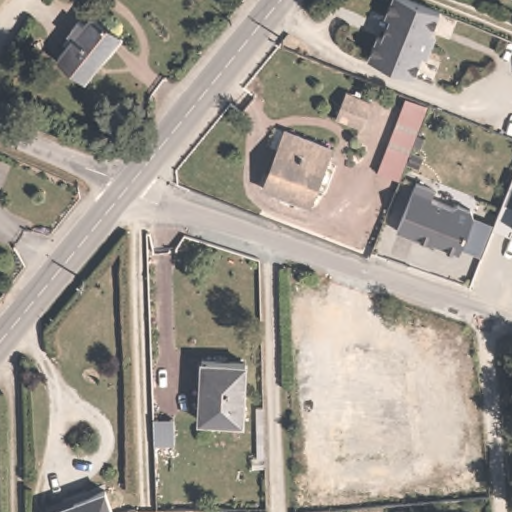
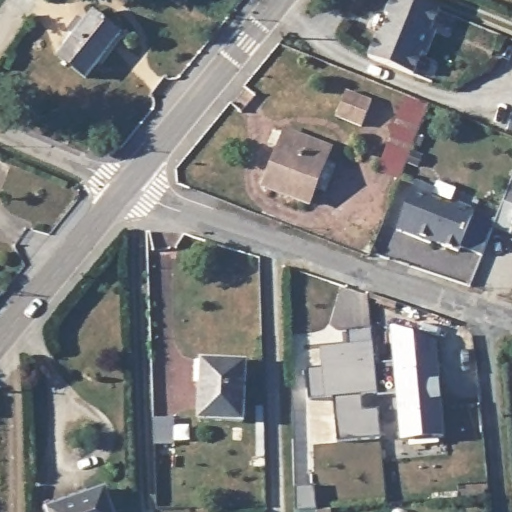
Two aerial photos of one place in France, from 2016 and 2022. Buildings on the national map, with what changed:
unchanged [(432,35),(436,37),(430,56),(424,55),(414,77),(368,58),(378,36),(382,38),(392,19),(385,16),(392,0),(411,0),(441,12),(432,35)]
unchanged [(122,36),(87,79),(57,56),(92,13),(122,36)]
unchanged [(375,96),(365,122),(342,113),(352,86),(375,96)]
unchanged [(379,169),(404,100),(427,106),(401,177),(379,169)]
unchanged [(333,144),(310,203),(264,186),(290,127),(333,144)]
unchanged [(512,176),(512,225),(507,235),(490,229),(480,255),(460,246),(472,214),(494,221),(512,176)]
unchanged [(451,206),(457,203),(470,208),(472,214),(458,251),(431,241),(430,243),(396,230),(415,181),(433,188),(430,197),(451,206)]
new [(377,393),(359,395),(361,410),(377,409),(378,437),(335,442),(331,398),(306,399),(304,369),(320,367),(319,348),(347,345),(345,330),(371,328),(375,366),(377,393)]
new [(435,343),(443,439),(402,442),(398,397),(378,398),(375,366),(395,364),(392,329),(435,343)]
demolished [(403,353),(408,456),(338,458),(333,354),(403,353)]
unchanged [(243,361),(243,420),(196,419),(197,359),(243,361)]
new [(174,419),(174,444),(154,445),(153,420),(174,419)]
unchanged [(56,502),(109,488),(115,512),(48,512),(47,505),(56,502)]

